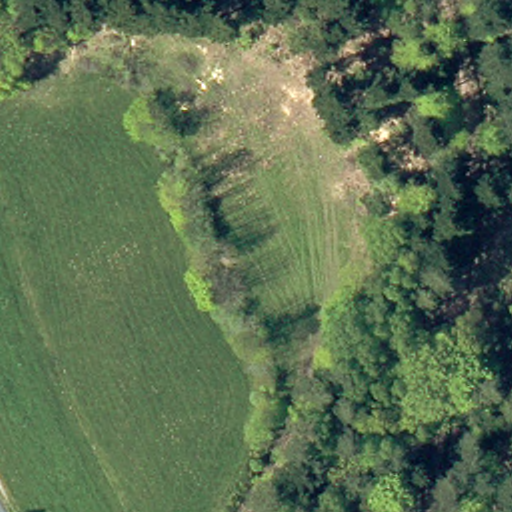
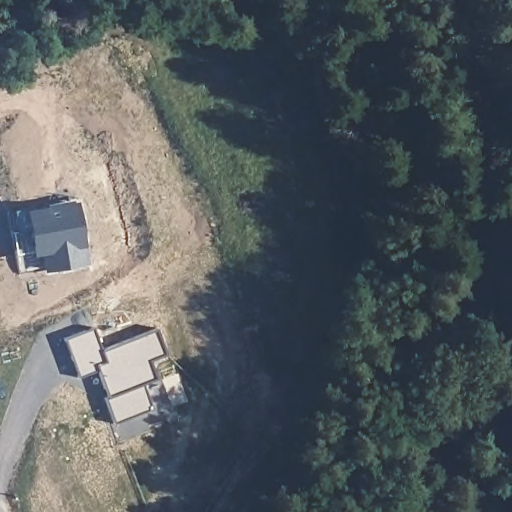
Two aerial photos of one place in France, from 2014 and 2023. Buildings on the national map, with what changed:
new [(45,206),(47,211),(76,206),(86,264),(19,276),(9,213),(45,206)]
new [(62,336),(94,325),(102,347),(159,327),(168,353),(152,360),(159,377),(145,383),(154,406),(115,422),(105,397),(109,396),(97,368),(77,376),(62,336)]

